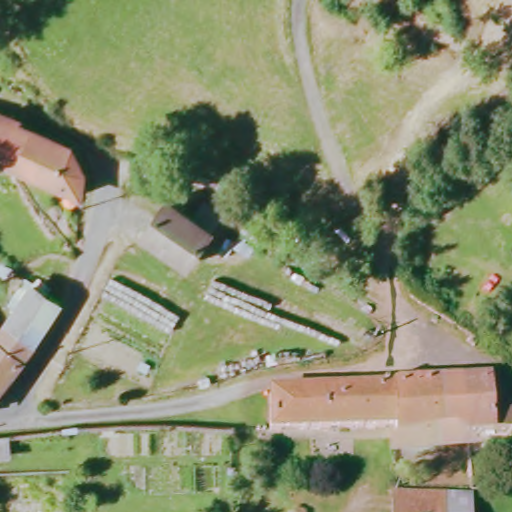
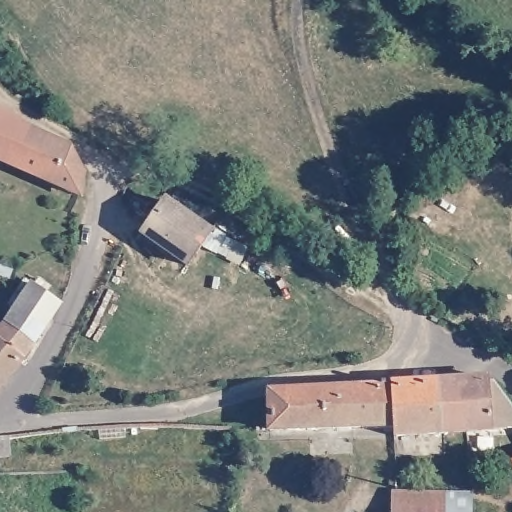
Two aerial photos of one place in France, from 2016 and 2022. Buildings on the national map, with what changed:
unchanged [(10,118),(16,119),(84,151),(98,170),(97,199),(0,154),(0,116),(10,118)]
unchanged [(196,272),(152,242),(175,209),(218,239),(196,272)]
unchanged [(30,361),(0,337),(0,332),(16,317),(39,287),(66,306),(30,361)]
unchanged [(30,361),(0,402),(0,337),(30,361)]
unchanged [(494,380),(494,383),(497,383),(512,403),(512,429),(475,432),(471,382),(494,380)]
unchanged [(450,434),(445,383),(471,382),(475,432),(450,434)]
unchanged [(400,437),(400,429),(397,387),(445,383),(450,434),(400,437)]
unchanged [(400,429),(275,433),(275,430),(275,395),(397,387),(400,429)]
unchanged [(9,452),(0,453),(0,440),(8,438),(9,452)]
unchanged [(403,496),(479,501),(478,512),(401,512),(403,496)]

